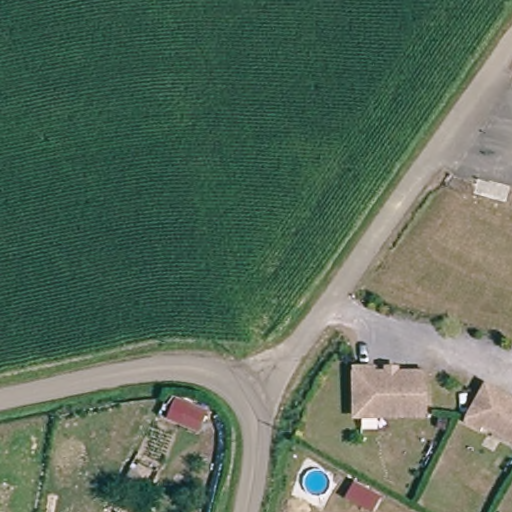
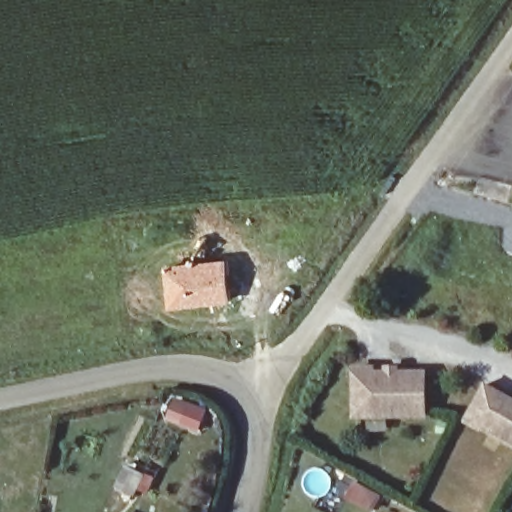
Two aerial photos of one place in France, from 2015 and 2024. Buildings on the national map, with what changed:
new [(227,258),(230,302),(167,309),(164,266),(227,258)]
unchanged [(366,420),(356,373),(373,369),(374,374),(388,371),(387,366),(396,364),(397,369),(424,362),(434,405),(366,420)]
unchanged [(490,422),(488,426),(472,414),(497,378),(512,389),(512,437),(490,422)]
unchanged [(209,411),(200,432),(165,421),(175,397),(209,411)]

